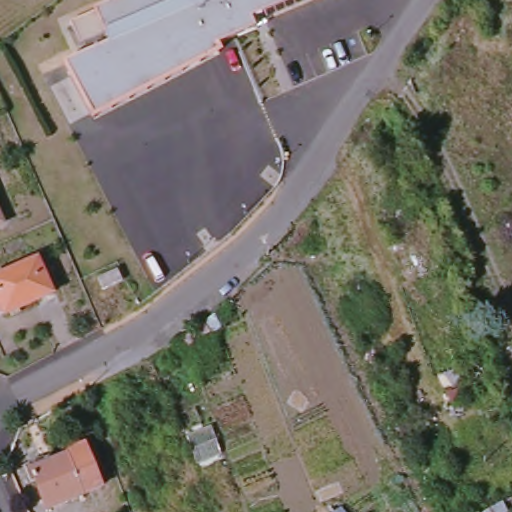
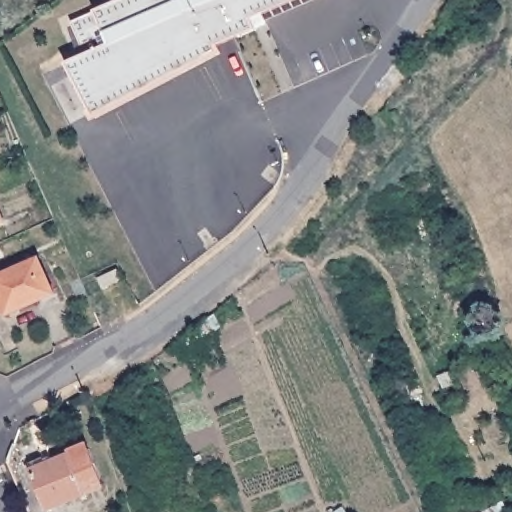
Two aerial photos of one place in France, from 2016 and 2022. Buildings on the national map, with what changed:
unchanged [(135,0),(290,0),(257,17),(262,26),(223,46),(227,52),(100,118),(71,62),(112,39),(107,30),(82,45),(75,31),(135,0)]
unchanged [(0,224),(0,216),(3,222),(0,224)]
unchanged [(59,288),(11,310),(10,308),(0,313),(0,273),(43,254),(59,288)]
unchanged [(99,278),(118,269),(123,280),(104,289),(99,278)]
unchanged [(33,470),(90,448),(105,485),(85,493),(85,494),(47,508),(33,470)]

